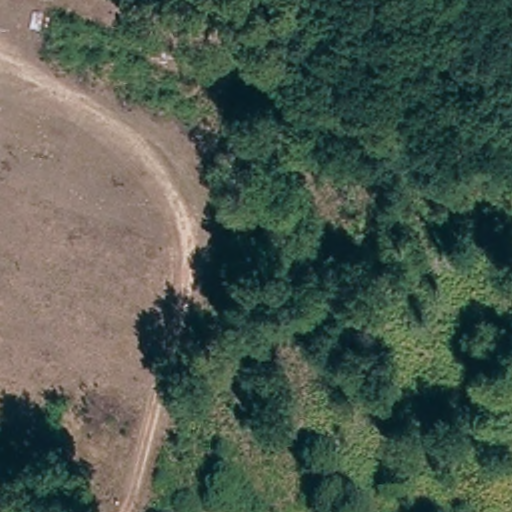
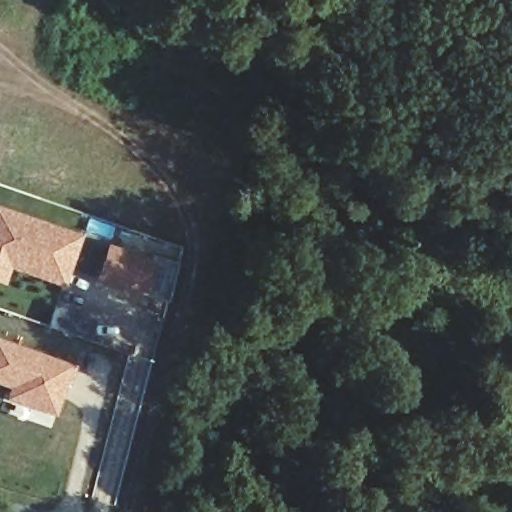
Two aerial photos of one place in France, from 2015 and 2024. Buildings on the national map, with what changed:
new [(84,237),(64,286),(10,268),(5,283),(0,281),(0,207),(84,237)]
new [(156,261),(144,298),(93,281),(107,244),(156,261)]
new [(74,365),(54,417),(2,398),(6,388),(0,386),(0,338),(74,365)]

